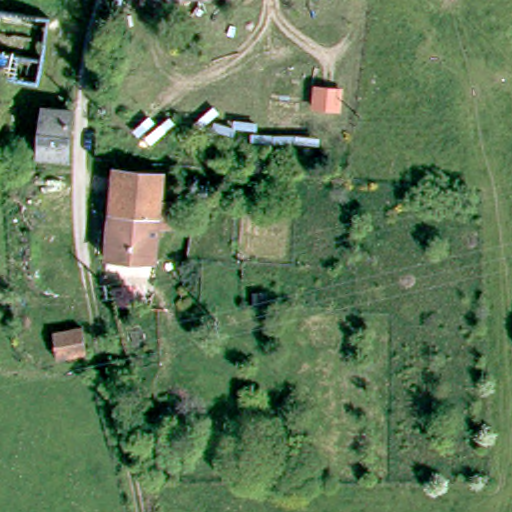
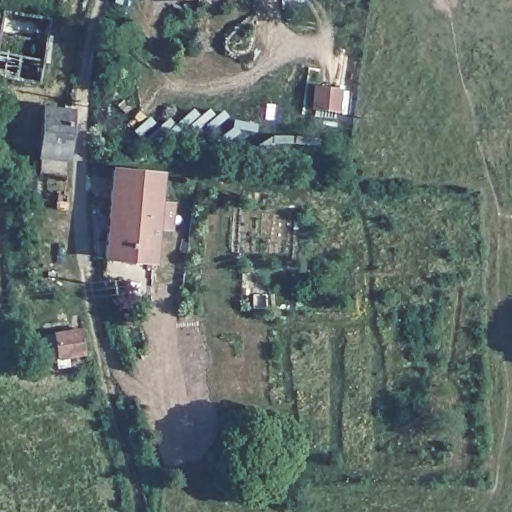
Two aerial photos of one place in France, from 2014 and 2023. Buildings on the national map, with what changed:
unchanged [(340,109),(315,106),(317,86),(341,89),(340,109)]
unchanged [(68,157),(42,155),(46,107),(71,109),(68,157)]
unchanged [(157,169),(151,257),(103,254),(110,164),(157,169)]
unchanged [(269,306),(257,306),(256,294),(268,294),(269,306)]
unchanged [(88,353),(60,358),(56,337),(85,331),(88,353)]

